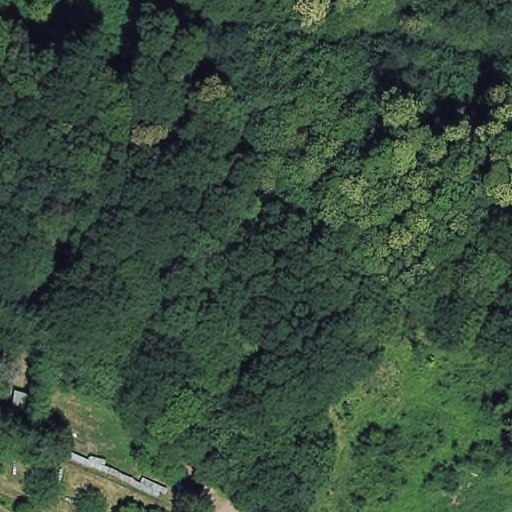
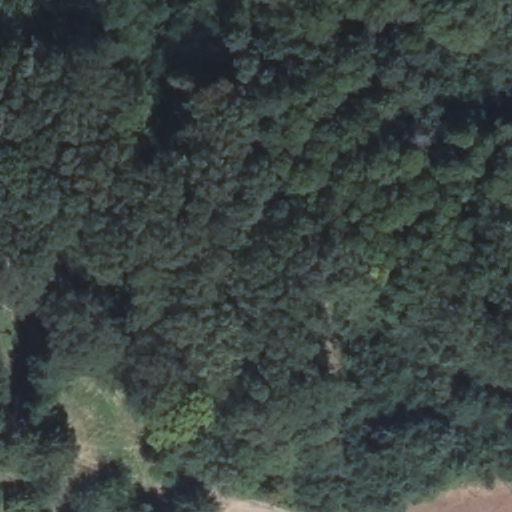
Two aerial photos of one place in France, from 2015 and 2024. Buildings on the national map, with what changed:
unchanged [(18,387),(45,393),(39,424),(12,418),(18,387)]

